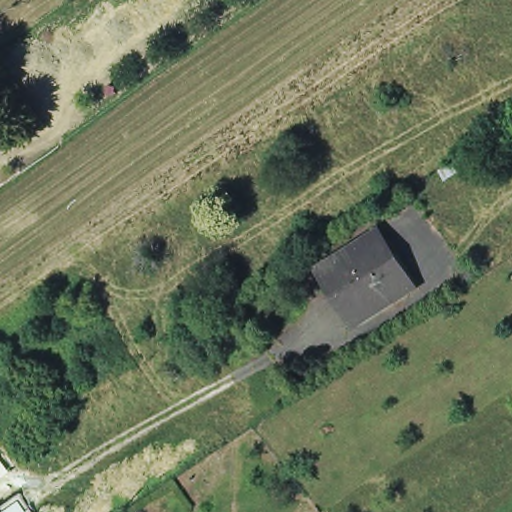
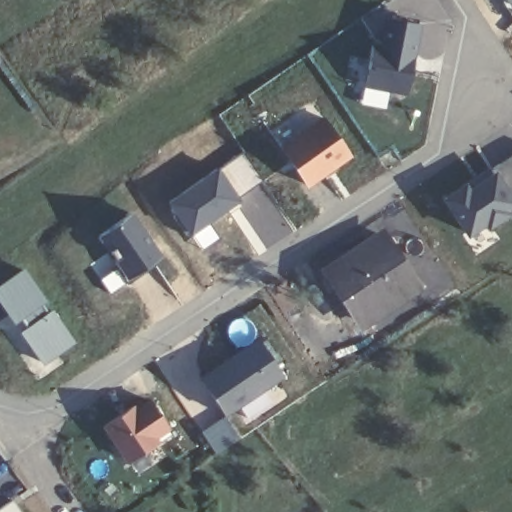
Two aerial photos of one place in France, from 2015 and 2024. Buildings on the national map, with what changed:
new [(512,15),(501,0),(512,0),(512,15)]
new [(421,24),(407,97),(365,90),(374,47),(382,48),(387,18),(421,24)]
new [(349,162),(306,193),(279,150),(325,118),(349,162)]
new [(470,243),(445,203),(512,159),(512,217),(470,243)]
new [(217,166),(241,200),(189,238),(164,200),(217,166)]
new [(94,236),(132,210),(162,256),(127,281),(109,294),(88,265),(105,252),(94,236)]
unchanged [(354,319),(320,267),(374,232),(407,284),(354,319)]
new [(73,346),(42,369),(0,307),(0,290),(25,270),(73,346)]
new [(286,378),(220,418),(198,377),(260,332),(286,378)]
new [(153,437),(155,442),(127,460),(104,425),(132,407),(135,411),(150,402),(167,428),(153,437)]
demolished [(0,499),(0,496),(2,499),(0,499)]
unchanged [(21,512),(0,512),(0,507),(13,499),(21,512)]

